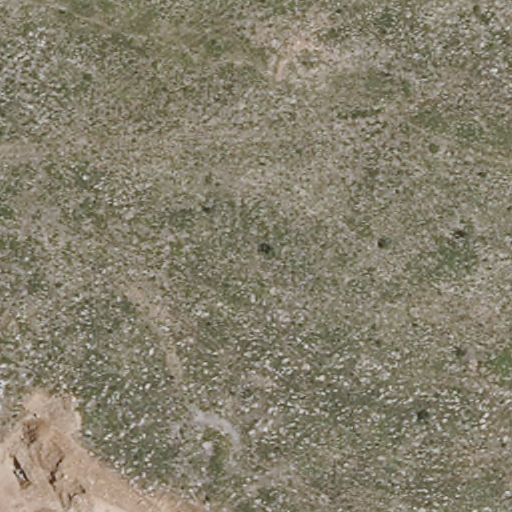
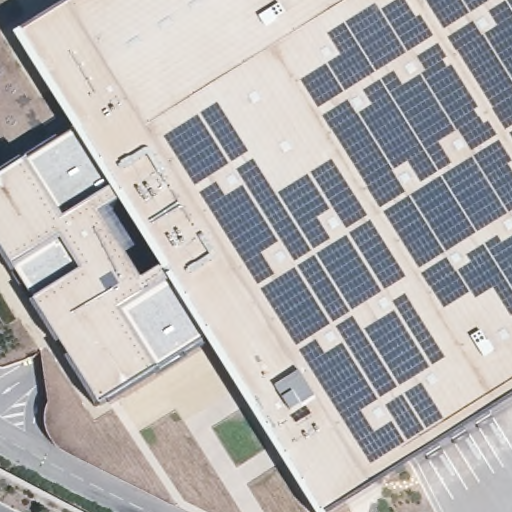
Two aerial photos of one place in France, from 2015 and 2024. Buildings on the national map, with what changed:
new [(338,512),(316,512),(213,341),(100,409),(0,251),(0,184),(82,136),(21,37),(81,0),(512,0),(512,402),(338,512)]

